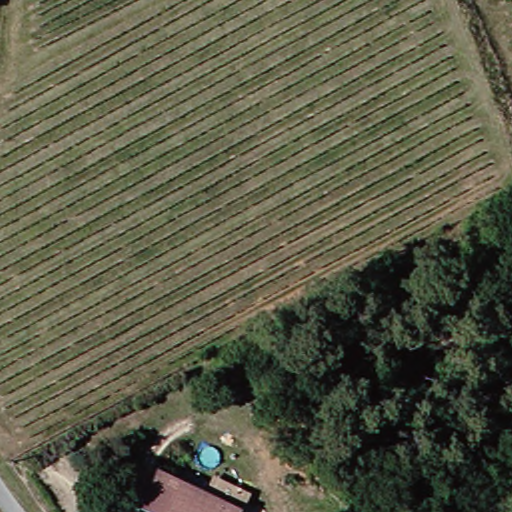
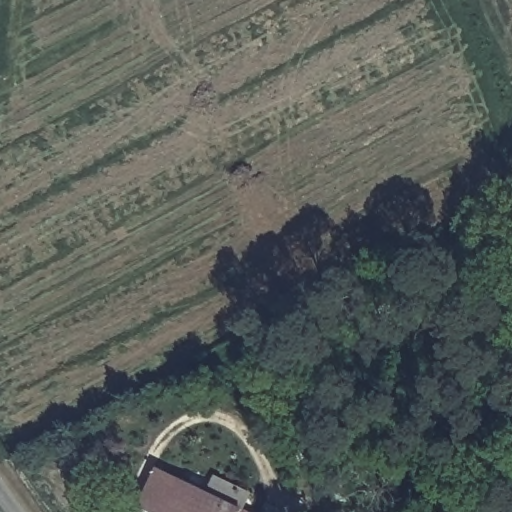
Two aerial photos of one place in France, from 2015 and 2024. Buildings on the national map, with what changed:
unchanged [(141,502),(159,467),(246,509),(244,512),(163,512),(141,502)]

